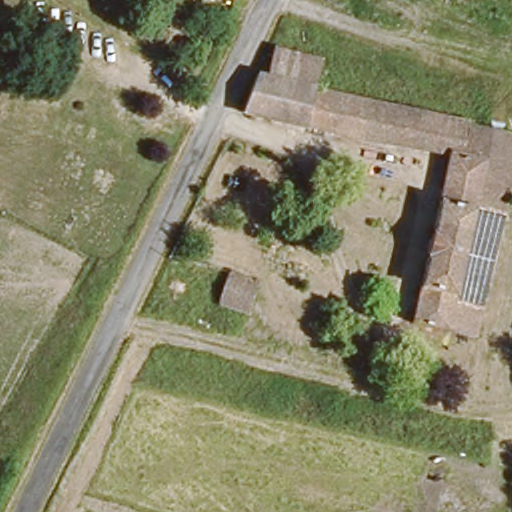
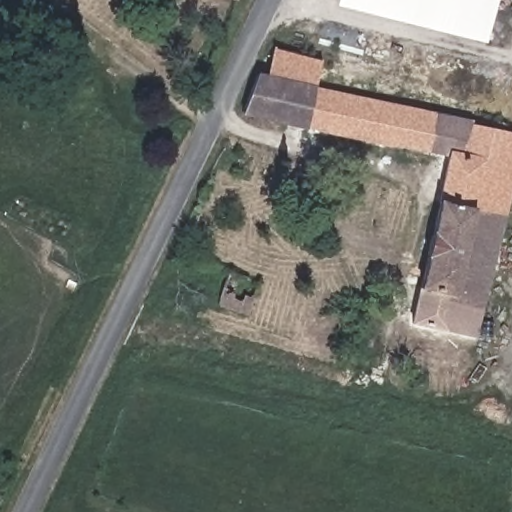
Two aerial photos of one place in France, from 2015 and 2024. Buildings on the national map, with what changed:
unchanged [(224,2),(219,0),(225,0),(224,2)]
new [(338,5),(339,0),(498,0),(487,42),(338,5)]
unchanged [(276,48),(319,57),(313,86),(269,75),(276,48)]
unchanged [(456,160),(238,116),(259,72),(269,75),(313,86),(414,111),(456,121),(458,112),(476,116),(473,129),(499,136),(512,139),(512,188),(493,259),(433,243),(456,160)]
unchanged [(472,336),(413,320),(433,243),(493,259),(472,336)]
unchanged [(261,297),(254,323),(235,317),(223,314),(229,288),(261,297)]

